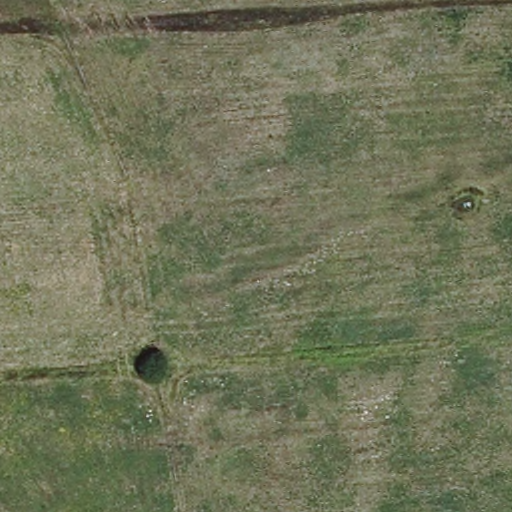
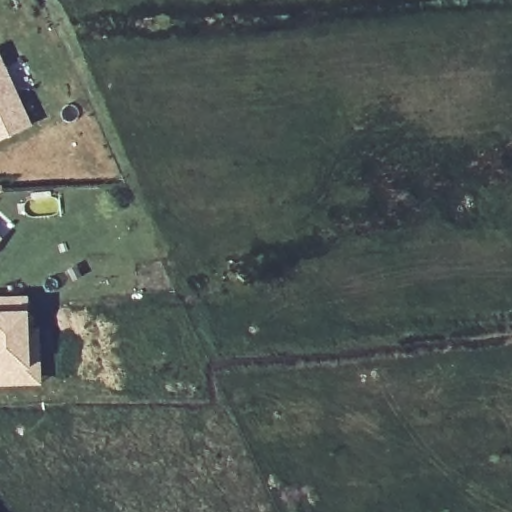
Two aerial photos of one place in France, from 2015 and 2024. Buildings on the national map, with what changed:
new [(25,127),(0,137),(0,67),(25,127)]
new [(3,237),(0,241),(0,235),(3,237)]
new [(27,297),(27,330),(38,329),(39,383),(0,384),(0,298),(27,297)]

